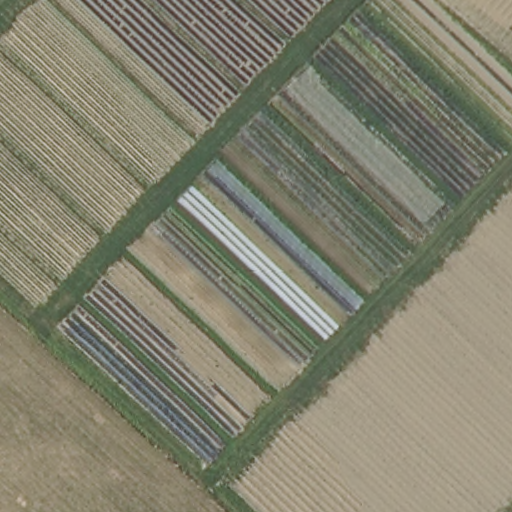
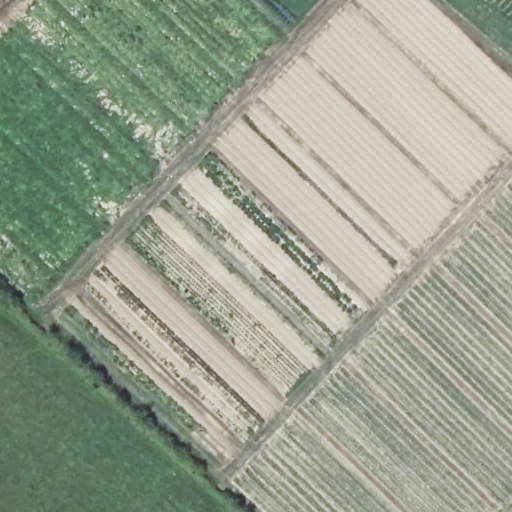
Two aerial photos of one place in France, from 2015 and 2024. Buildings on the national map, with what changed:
[]

